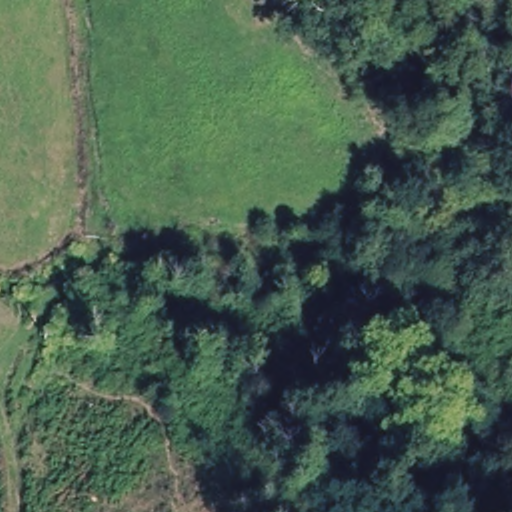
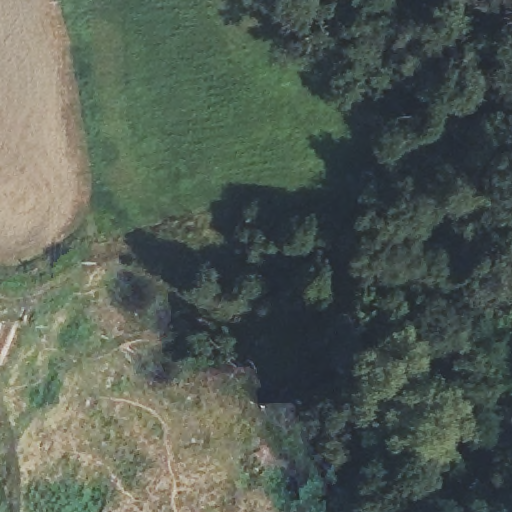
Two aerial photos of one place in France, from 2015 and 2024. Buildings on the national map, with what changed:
[]

